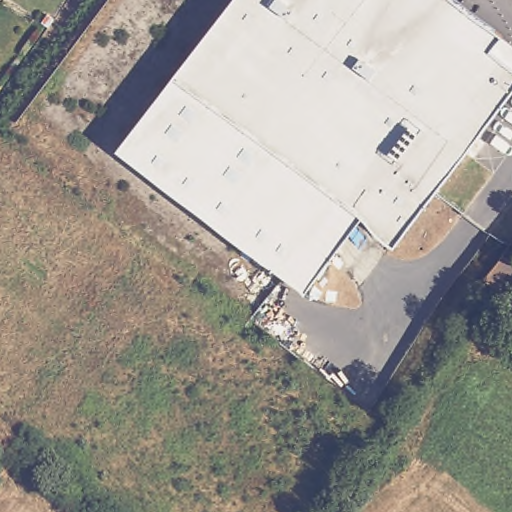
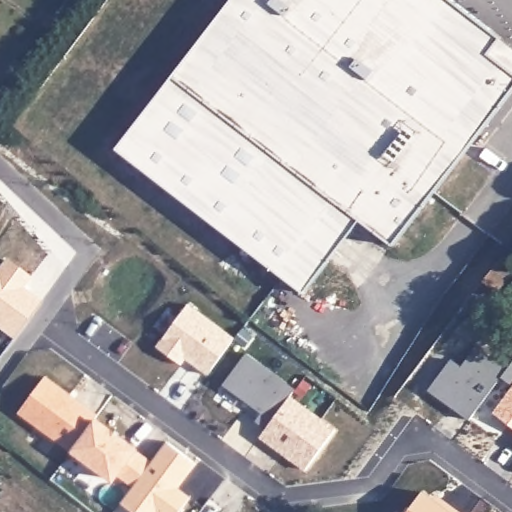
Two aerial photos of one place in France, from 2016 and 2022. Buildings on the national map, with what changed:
unchanged [(464,0),(512,40),(512,94),(395,244),(359,221),(307,287),(122,146),(123,142),(232,0),(464,0)]
new [(4,258),(32,278),(25,288),(41,299),(13,341),(0,331),(0,264),(4,258)]
unchanged [(485,283),(502,262),(512,270),(512,274),(498,293),(485,283)]
new [(452,358),(461,365),(476,346),(507,368),(469,420),(430,391),(452,358)]
new [(247,352),(297,388),(292,396),(336,428),(305,471),(259,438),(266,428),(256,421),(262,412),(224,385),(247,352)]
new [(96,417),(152,461),(167,441),(195,463),(177,487),(191,497),(177,512),(135,512),(122,502),(135,487),(119,474),(112,483),(72,452),(96,417)]
new [(423,493),(449,512),(409,512),(423,493)]
new [(211,498),(228,512),(200,512),(211,498)]
new [(452,507),(460,512),(450,512),(452,507)]

